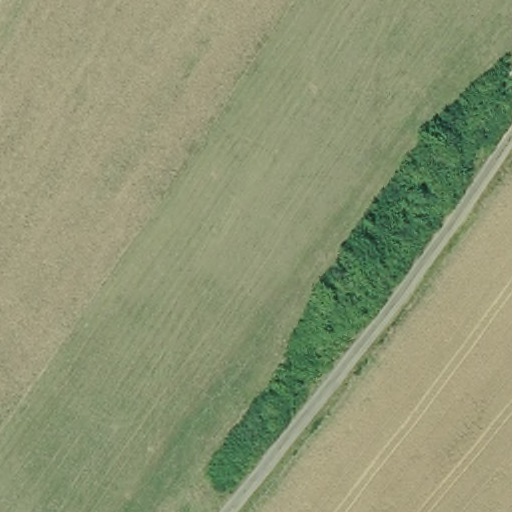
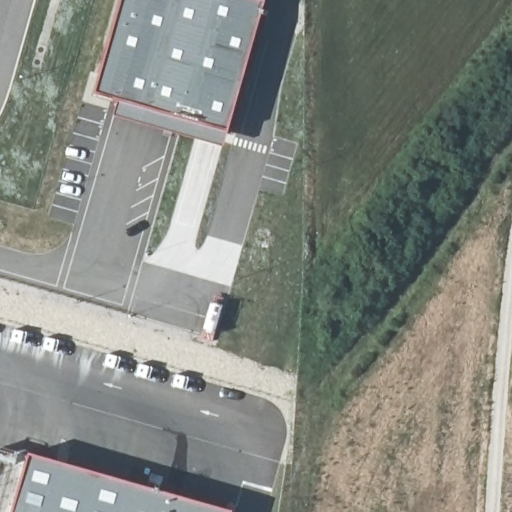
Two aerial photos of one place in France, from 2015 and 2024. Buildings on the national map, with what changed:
new [(221,146),(112,117),(115,102),(92,95),(120,0),(261,0),(228,134),(221,146)]
new [(231,512),(11,512),(27,454),(232,511),(231,512)]

